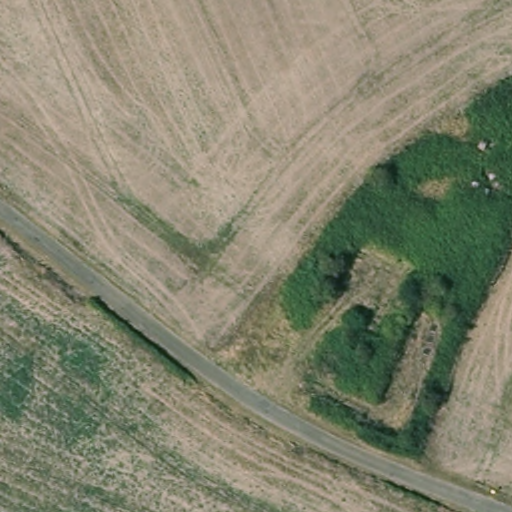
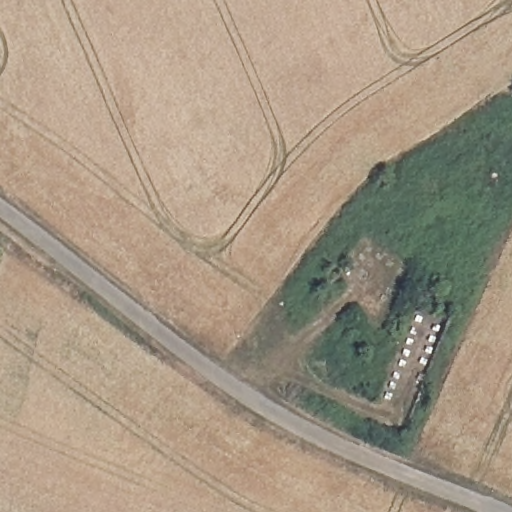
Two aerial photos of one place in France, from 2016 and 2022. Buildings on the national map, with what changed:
[]

